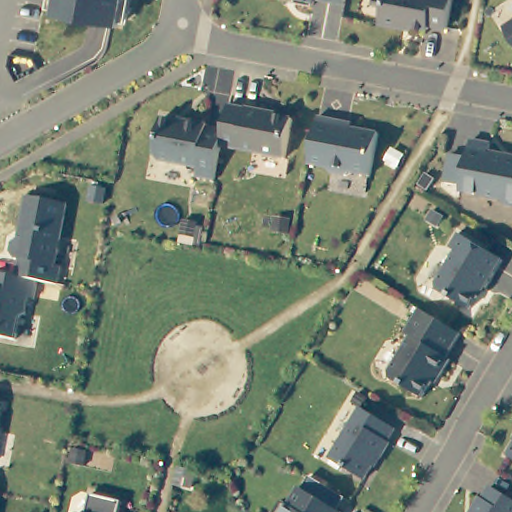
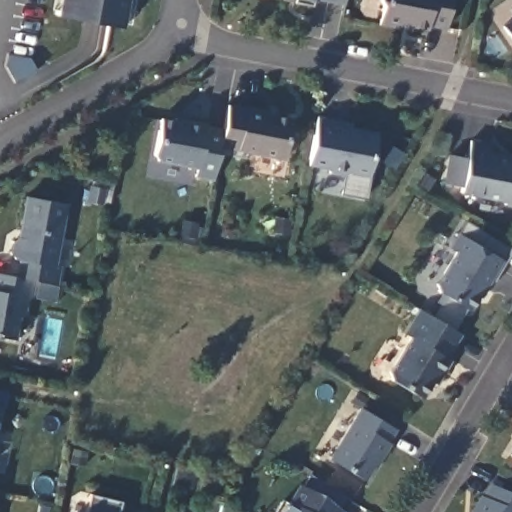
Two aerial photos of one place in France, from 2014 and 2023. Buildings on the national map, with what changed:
unchanged [(125,0),(121,26),(56,14),(59,0),(125,0)]
unchanged [(295,1),(295,0),(314,0),(313,4),(295,1)]
unchanged [(334,0),(345,0),(345,2),(334,0)]
unchanged [(428,25),(428,28),(411,25),(411,29),(380,24),(383,5),(380,0),(452,0),(446,29),(428,25)]
unchanged [(505,26),(512,21),(512,37),(505,26)]
unchanged [(285,158),(220,147),(224,130),(229,105),(266,112),(265,114),(292,119),(285,158)]
unchanged [(330,168),(308,164),(318,116),(343,120),(341,127),(350,128),(350,127),(378,132),(370,176),(351,173),(345,176),(330,173),(330,168)]
unchanged [(196,178),(197,168),(159,162),(154,155),(161,119),(174,121),(175,119),(207,124),(207,127),(224,130),(220,147),(215,181),(196,178)]
unchanged [(508,203),(466,196),(467,191),(450,188),(455,159),(473,162),(476,144),(496,148),(495,157),(512,160),(512,209),(510,209),(508,203)]
unchanged [(30,197),(71,203),(60,265),(64,265),(62,284),(40,280),(22,276),(25,260),(20,259),(16,254),(17,242),(23,238),(27,239),(29,233),(25,232),(30,197)]
unchanged [(471,309),(438,290),(438,283),(457,251),(451,247),(460,232),(503,259),(487,287),(485,285),(471,309)]
unchanged [(33,297),(30,313),(24,317),(20,339),(0,336),(0,337),(0,272),(11,274),(22,276),(40,280),(38,298),(33,297)]
unchanged [(421,308),(462,333),(448,357),(452,359),(443,375),(438,372),(423,398),(392,379),(391,371),(412,337),(406,333),(421,308)]
unchanged [(393,445),(396,447),(387,462),(383,461),(370,484),(337,463),(367,412),(400,433),(393,445)]
unchanged [(510,457),(512,454),(512,459),(510,457)]
unchanged [(482,498),(485,499),(492,487),(512,499),(512,512),(474,512),(482,498)]
unchanged [(90,494),(122,502),(119,512),(86,512),(90,494)]
unchanged [(334,512),(294,512),(305,494),(334,512)]
unchanged [(282,507),(291,512),(279,512),(282,507)]

